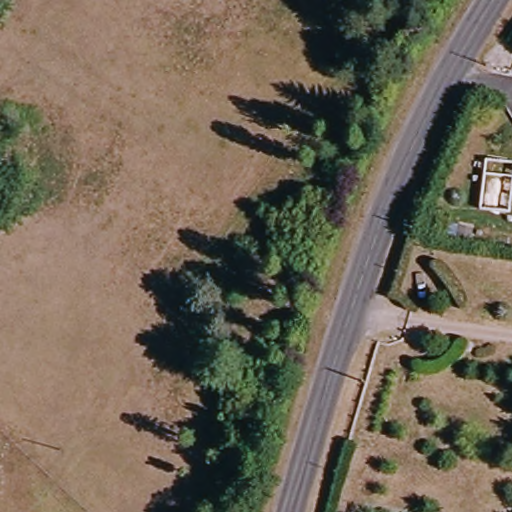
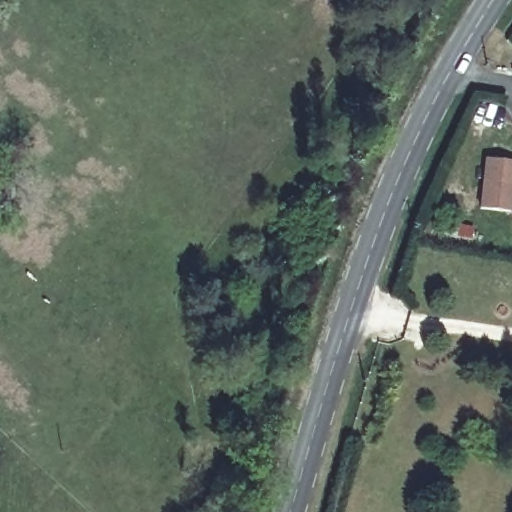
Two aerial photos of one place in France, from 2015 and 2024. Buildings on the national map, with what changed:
new [(487,161),(512,164),(512,209),(512,214),(482,211),(487,161)]

